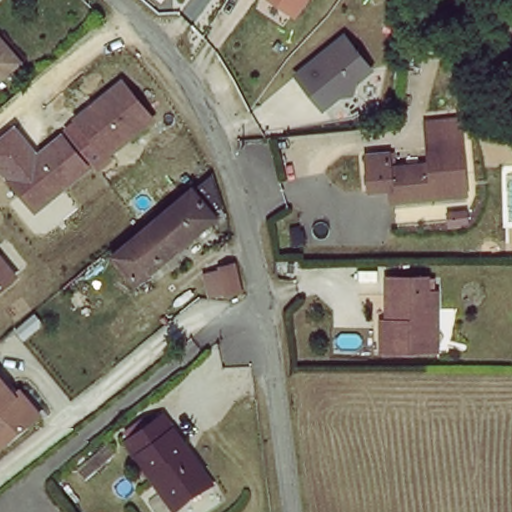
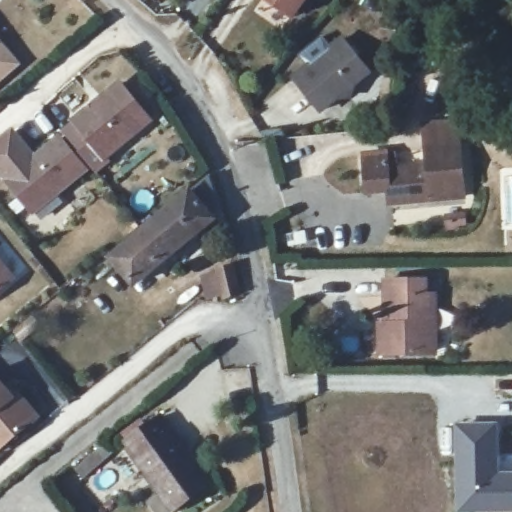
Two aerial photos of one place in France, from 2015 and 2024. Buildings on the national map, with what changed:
unchanged [(264,0),(309,0),(294,21),(264,0)]
unchanged [(343,36),(372,72),(353,89),(352,99),(339,100),(320,115),(291,77),(343,36)]
unchanged [(20,62),(0,79),(0,39),(20,62)]
unchanged [(122,80),(154,121),(105,160),(72,119),(122,80)]
unchanged [(394,210),(391,193),(368,195),(364,159),(392,155),(396,169),(431,166),(425,124),(466,121),(473,202),(394,210)]
unchanged [(37,153),(60,133),(90,170),(34,215),(0,175),(0,136),(13,125),(37,153)]
unchanged [(204,229),(208,233),(132,295),(103,260),(210,171),(222,216),(204,229)]
unchanged [(17,278),(0,292),(0,258),(17,278)]
unchanged [(245,293),(207,299),(204,274),(239,262),(245,293)]
unchanged [(435,296),(436,353),(382,353),(382,324),(389,325),(390,280),(428,278),(429,296),(435,296)]
unchanged [(16,393),(21,388),(43,415),(0,452),(0,374),(16,393)]
unchanged [(154,478),(126,440),(163,412),(213,477),(181,502),(176,507),(154,478)]
new [(512,472),(512,512),(456,512),(456,423),(500,422),(500,472),(512,472)]

